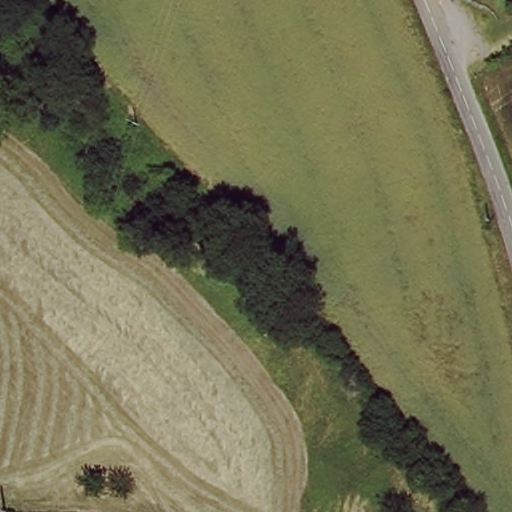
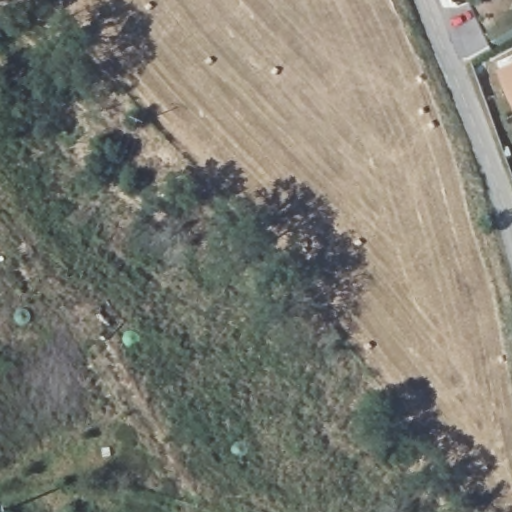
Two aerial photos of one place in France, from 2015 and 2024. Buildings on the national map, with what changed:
new [(512,65),(512,105),(498,71),(512,65)]

